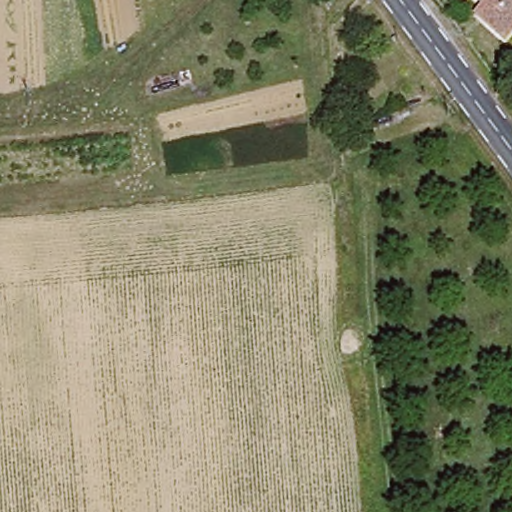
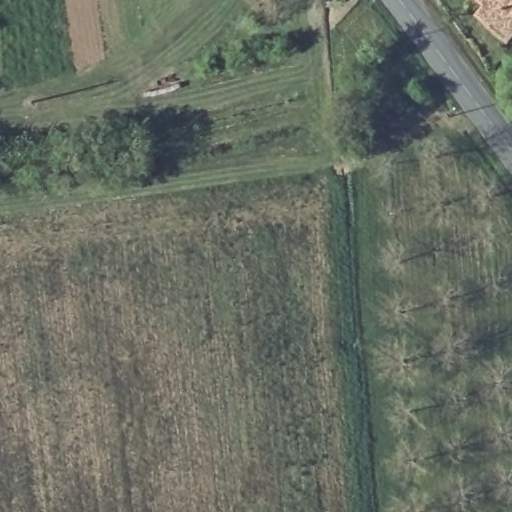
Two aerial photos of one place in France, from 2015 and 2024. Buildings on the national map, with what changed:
unchanged [(479,0),(512,0),(512,43),(509,47),(486,27),(473,16),(484,4),(479,0)]

